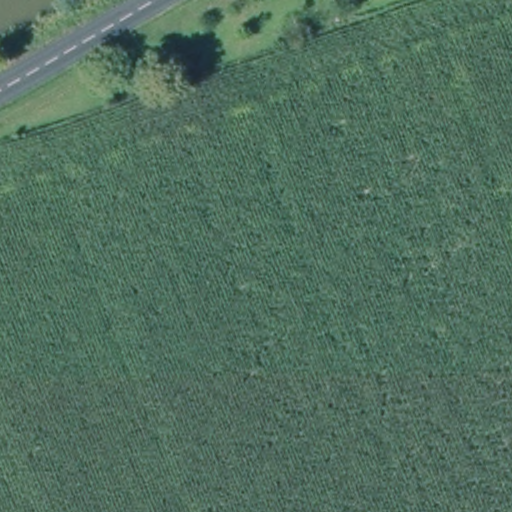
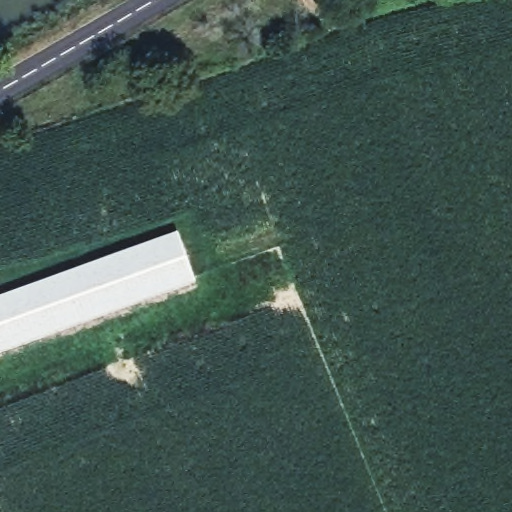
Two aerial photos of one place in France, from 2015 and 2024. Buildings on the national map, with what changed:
new [(195,277),(0,349),(0,293),(176,228),(195,277)]

